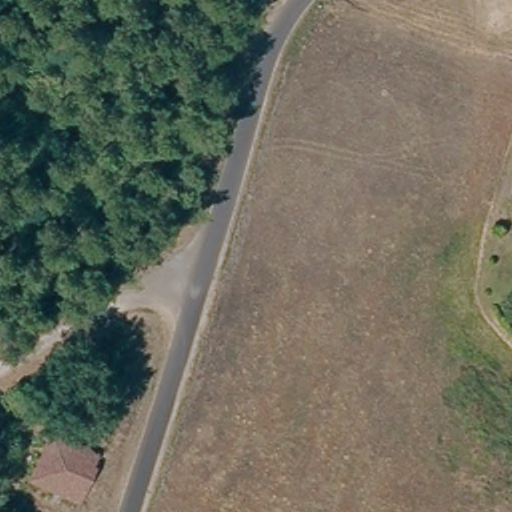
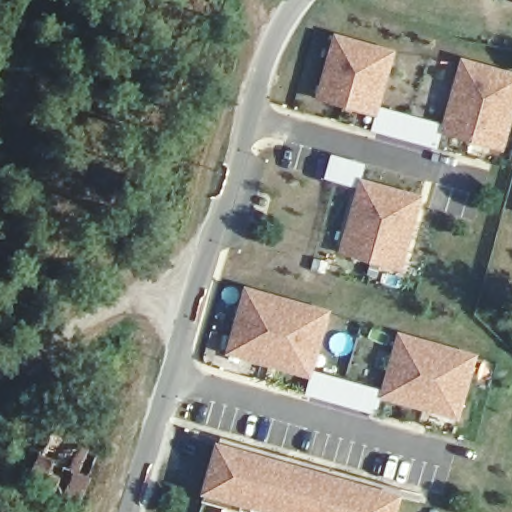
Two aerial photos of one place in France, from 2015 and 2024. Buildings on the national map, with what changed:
new [(335,32),(363,40),(346,102),(336,99),(317,94),(321,82),(335,32)]
new [(356,105),(346,102),(363,40),(392,48),(378,98),(374,110),(356,105)]
new [(463,57),(493,66),(476,125),(473,138),(461,135),(443,129),(446,117),(463,57)]
new [(473,138),(476,125),(493,66),(512,71),(512,115),(506,134),(503,147),(484,141),(473,138)]
new [(361,178),(391,187),(370,259),(359,256),(340,251),(344,239),(361,178)]
new [(382,262),(370,259),(391,187),(421,195),(404,255),(400,268),(382,262)]
new [(238,355),(227,352),(244,288),(286,299),(327,311),(309,375),(298,372),(267,364),(238,355)]
new [(393,399),(382,396),(399,334),(438,345),(476,355),(458,418),(447,414),(420,407),(393,399)]
unchanged [(51,436),(96,452),(75,500),(29,481),(48,436),(51,436)]
new [(269,512),(244,505),(241,511),(203,500),(206,493),(203,493),(216,442),(403,492),(398,512),(269,512)]

